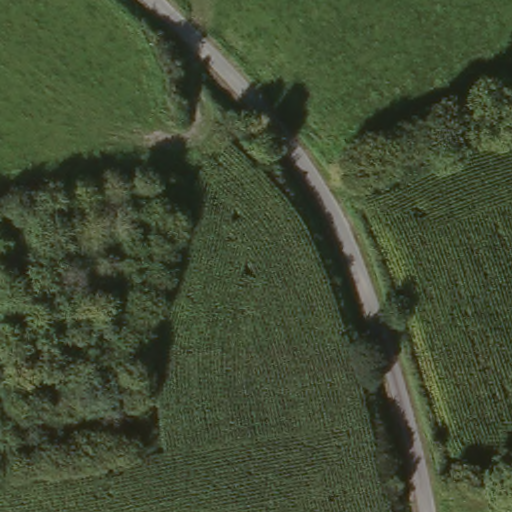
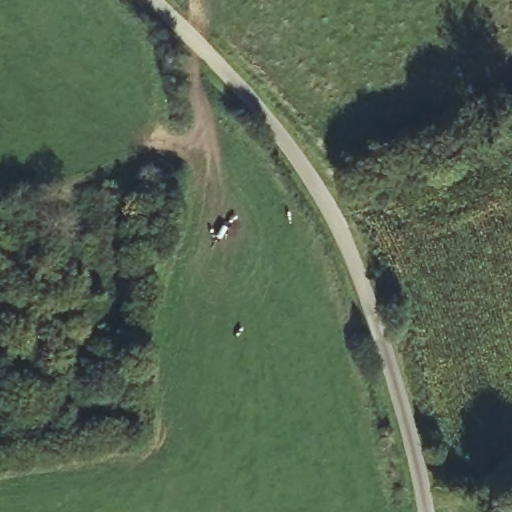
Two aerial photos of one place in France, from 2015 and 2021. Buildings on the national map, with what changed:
[]

